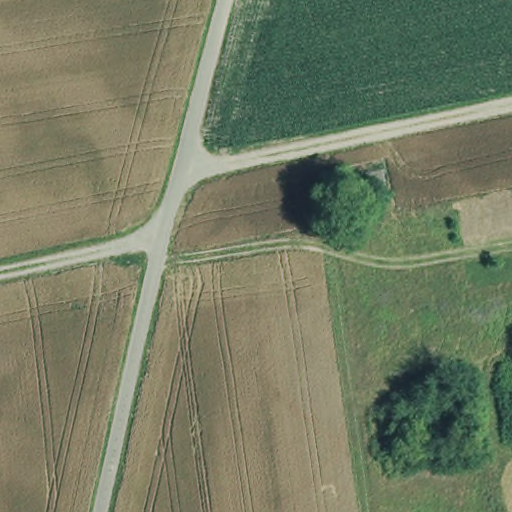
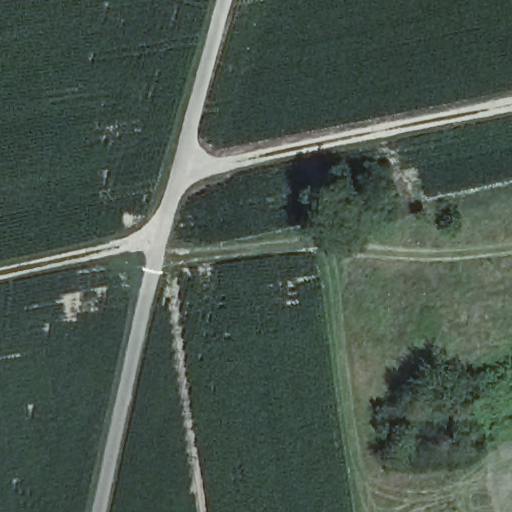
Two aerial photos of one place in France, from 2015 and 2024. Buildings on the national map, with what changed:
unchanged [(390,190),(341,199),(337,173),(381,167),(390,190)]

